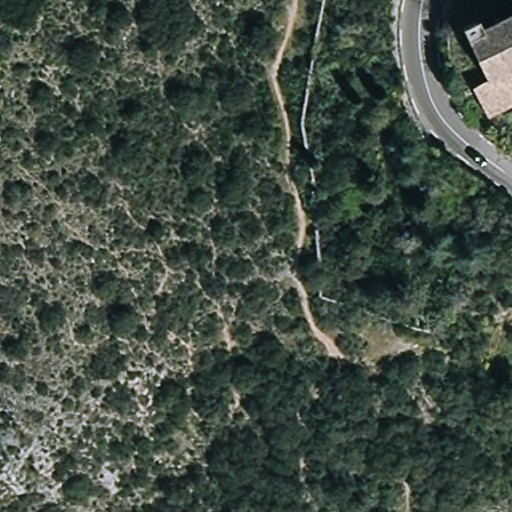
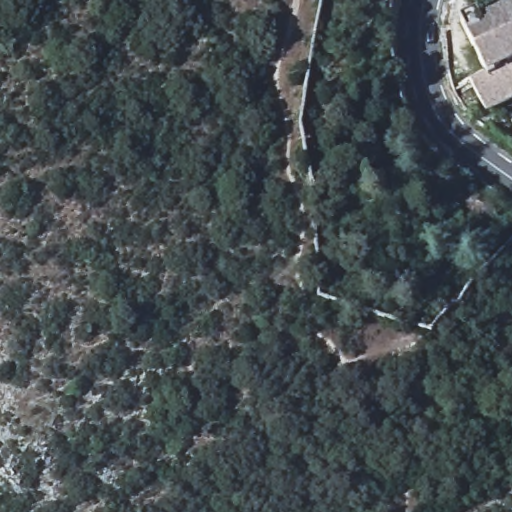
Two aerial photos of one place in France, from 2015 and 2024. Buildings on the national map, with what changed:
unchanged [(489,113),(474,84),(488,76),(462,25),(475,18),(479,26),(494,19),(490,13),(498,10),(500,14),(512,8),(512,101),(489,113)]

